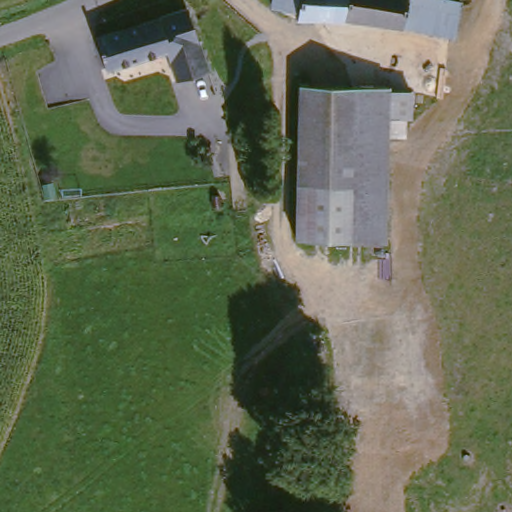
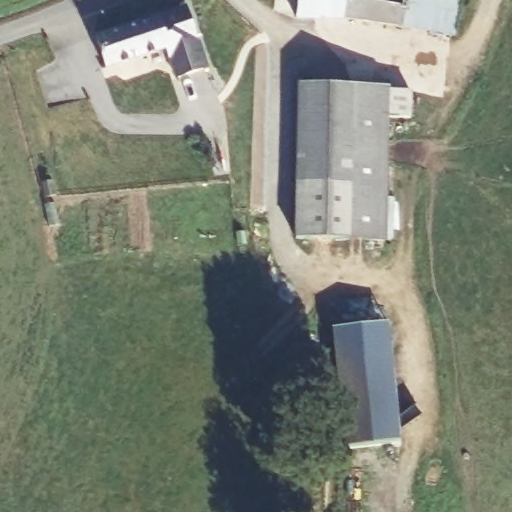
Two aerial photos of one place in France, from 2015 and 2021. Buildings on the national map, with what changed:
unchanged [(185,0),(212,53),(183,69),(169,41),(113,72),(97,41),(174,0),(185,0)]
unchanged [(272,0),(460,0),(456,34),(352,16),(294,17),(295,9),(271,8),(272,0)]
unchanged [(307,235),(308,82),(352,83),(376,84),(390,84),(388,237),(353,236),(307,235)]
new [(394,318),(411,437),(356,445),(339,325),(394,318)]

